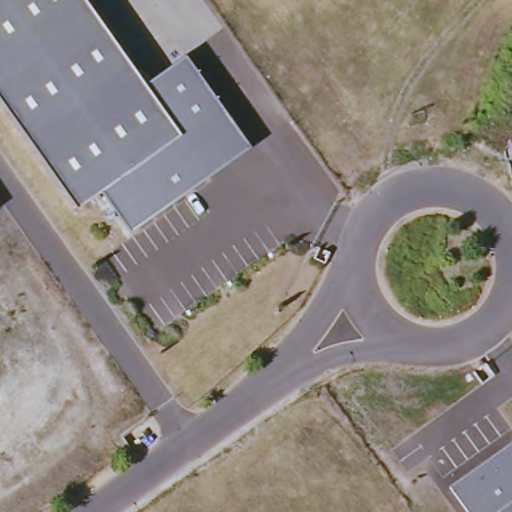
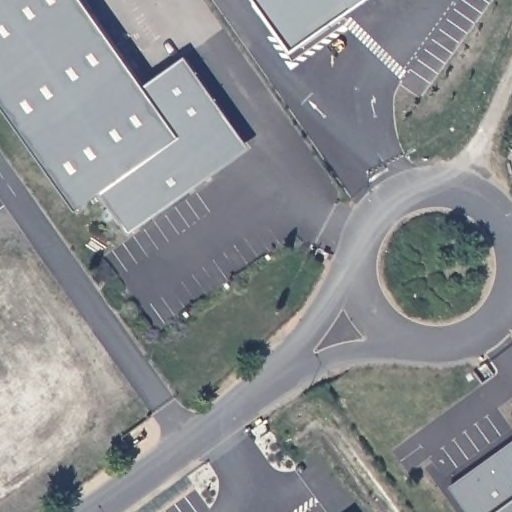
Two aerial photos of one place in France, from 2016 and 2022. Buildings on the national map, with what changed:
unchanged [(100,192),(78,210),(0,102),(0,0),(80,0),(144,89),(185,59),(249,151),(132,232),(100,192)]
new [(292,47),(259,0),(359,0),(292,47)]
unchanged [(512,447),(512,480),(512,481),(512,500),(495,512),(468,512),(452,490),(512,447)]
unchanged [(495,512),(512,500),(512,512),(495,512)]

